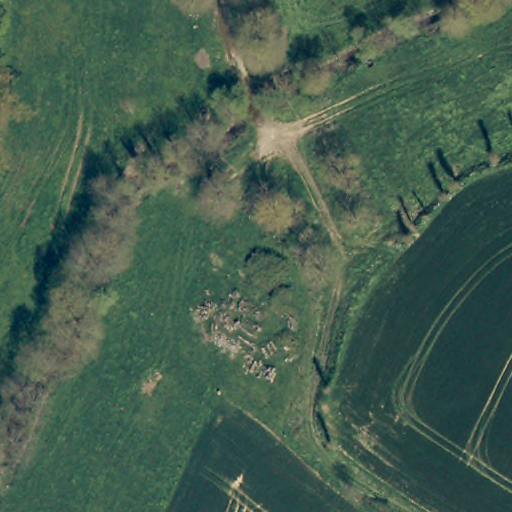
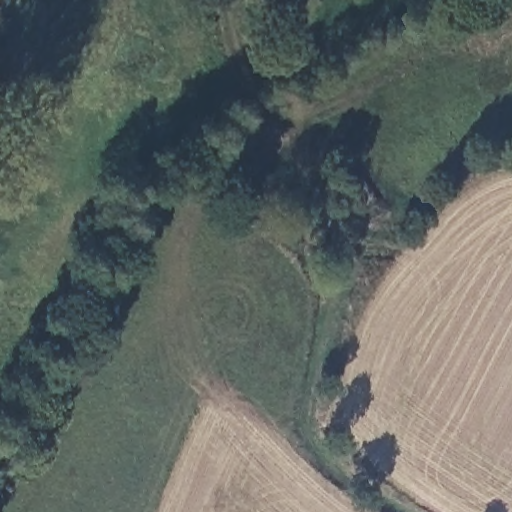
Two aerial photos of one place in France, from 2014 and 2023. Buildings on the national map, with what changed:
[]

